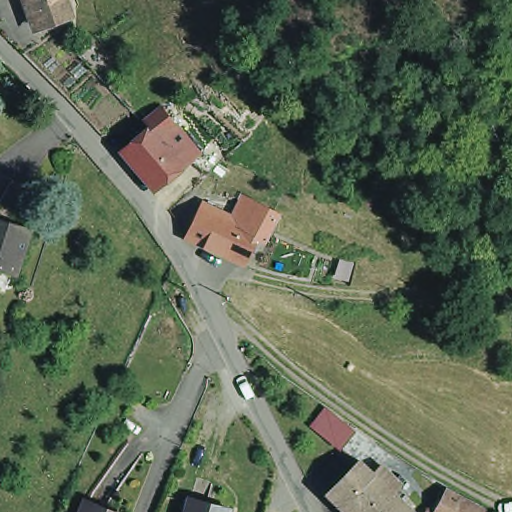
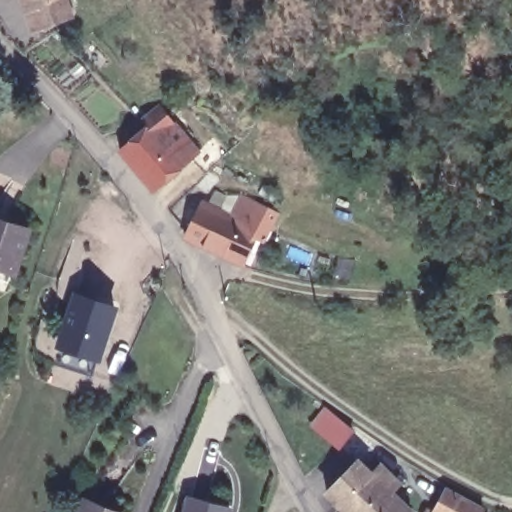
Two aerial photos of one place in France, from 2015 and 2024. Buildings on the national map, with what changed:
unchanged [(35,37),(20,0),(58,0),(66,25),(50,31),(40,35),(35,37)]
unchanged [(141,129),(140,126),(153,117),(170,137),(187,159),(195,152),(207,166),(191,179),(181,169),(143,200),(110,160),(145,132),(141,129)]
demolished [(176,185),(185,195),(169,211),(160,200),(176,185)]
unchanged [(180,237),(197,201),(212,208),(227,215),(230,210),(238,195),(275,214),(267,229),(261,241),(252,237),(240,265),(195,244),(180,237)]
unchanged [(0,218),(27,226),(14,268),(11,267),(8,277),(0,274),(0,218)]
new [(112,308),(91,379),(51,365),(71,295),(112,308)]
unchanged [(326,413),(352,433),(350,437),(340,450),(313,429),(325,415),(326,413)]
unchanged [(395,482),(401,488),(396,494),(389,502),(400,512),(334,512),(323,501),(355,468),(368,480),(374,474),(390,487),(395,482)]
unchanged [(235,504),(233,512),(189,512),(194,493),(235,504)]
unchanged [(445,495),(455,501),(461,505),(467,507),(475,512),(437,512),(440,506),(445,495)]
unchanged [(88,512),(72,512),(75,506),(88,512)]

